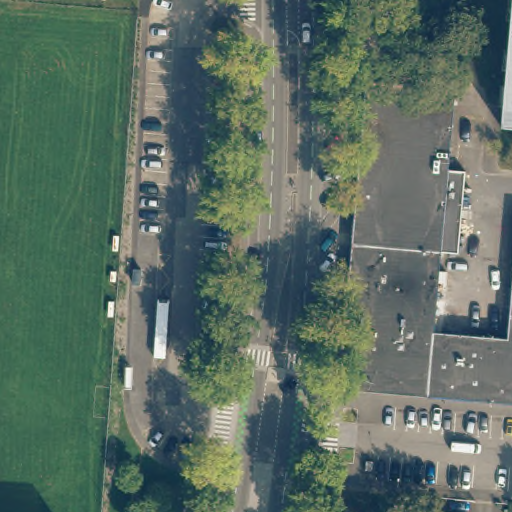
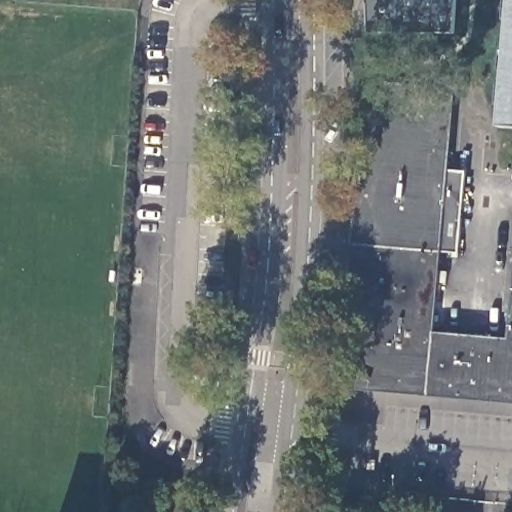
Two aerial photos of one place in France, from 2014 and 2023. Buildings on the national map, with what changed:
new [(368,31),(367,0),(456,0),(454,33),(368,31)]
unchanged [(512,6),(512,130),(501,128),(512,6)]
unchanged [(447,110),(441,191),(434,273),(428,342),(500,349),(510,236),(512,236),(512,402),(373,389),(345,386),(370,103),(412,107),(447,110)]
unchanged [(441,191),(460,192),(453,274),(434,273),(441,191)]

